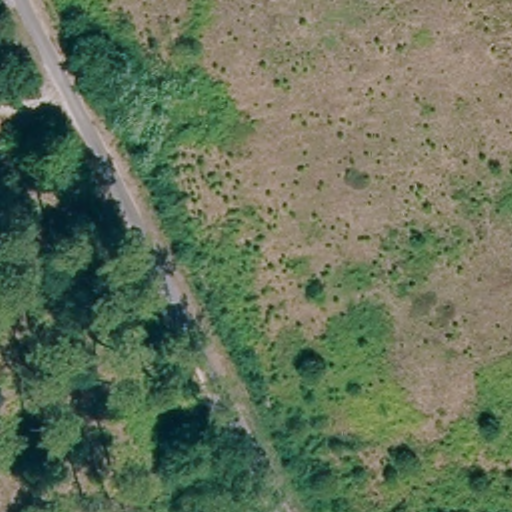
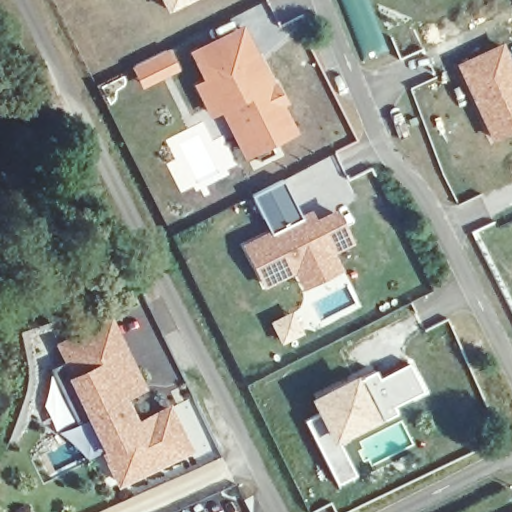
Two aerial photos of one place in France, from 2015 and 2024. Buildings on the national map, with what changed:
new [(166,11),(161,0),(190,0),(166,11)]
new [(244,160),(221,112),(210,117),(193,82),(197,81),(184,52),(243,25),(274,82),(276,82),(288,105),(285,106),(298,132),(244,160)]
new [(512,131),(490,141),(454,63),(502,42),(512,63),(512,131)]
new [(141,88),(131,67),(169,49),(180,70),(141,88)]
new [(301,215),(312,209),(316,217),(336,207),(355,246),(336,254),(345,270),(303,291),(295,273),(262,288),(241,245),(271,231),(252,195),(282,180),(301,215)]
new [(105,458),(87,420),(76,425),(51,370),(66,363),(57,343),(112,317),(147,390),(127,398),(137,419),(171,402),(193,451),(119,488),(105,458)]
new [(307,422),(319,417),(309,397),(355,375),(358,382),(376,372),(379,378),(409,363),(423,392),(395,406),(398,414),(339,442),(356,475),(338,484),(307,422)]

